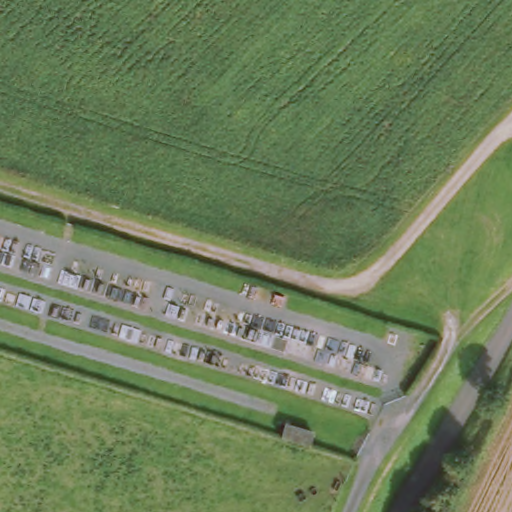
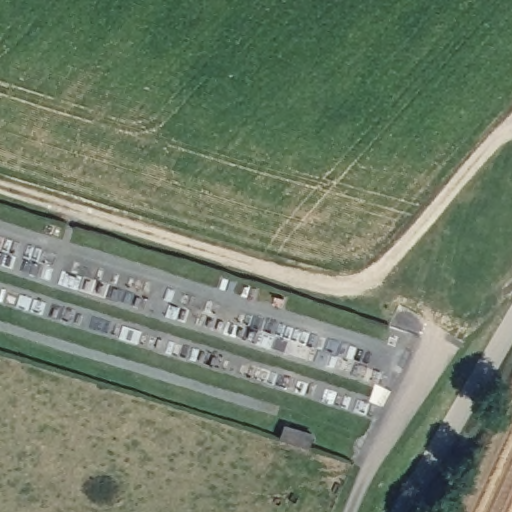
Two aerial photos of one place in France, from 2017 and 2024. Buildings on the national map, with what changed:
unchanged [(316,432),(313,453),(279,443),(286,422),(316,432)]

